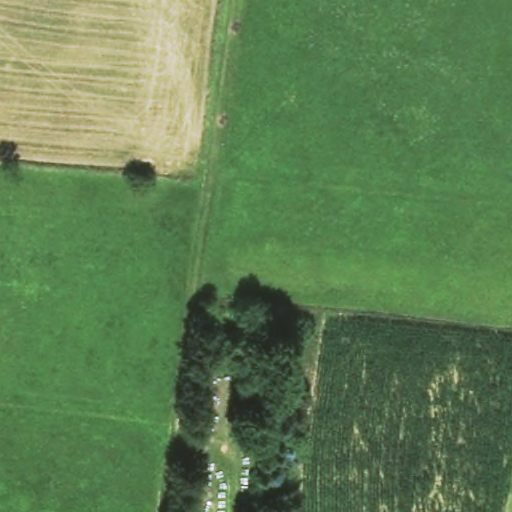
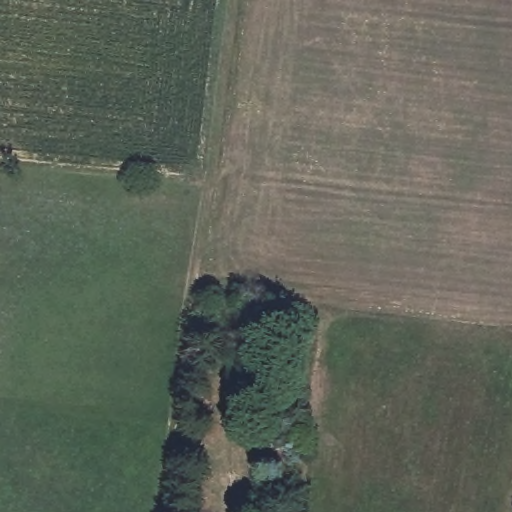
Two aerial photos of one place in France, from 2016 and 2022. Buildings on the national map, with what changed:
[]

